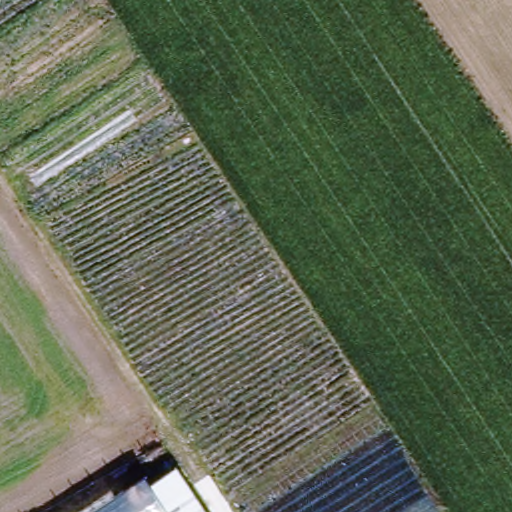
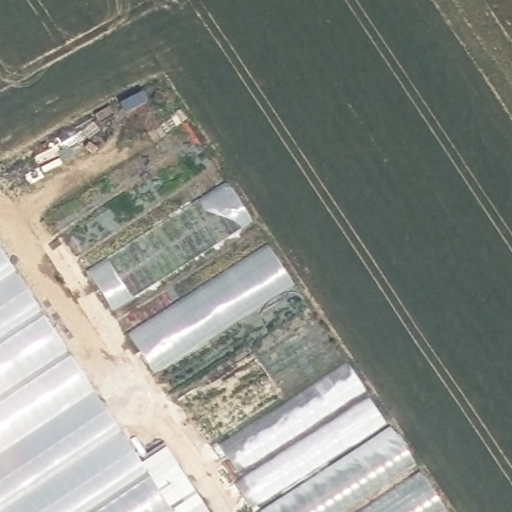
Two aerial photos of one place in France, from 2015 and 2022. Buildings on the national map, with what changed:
new [(269,245),(295,287),(155,373),(130,333),(269,245)]
new [(125,431),(0,512),(0,247),(125,431)]
new [(447,512),(254,512),(235,483),(242,478),(220,445),(351,364),(447,512)]
unchanged [(125,431),(177,512),(0,512),(125,431)]
new [(209,512),(177,512),(156,480),(179,466),(209,512)]

